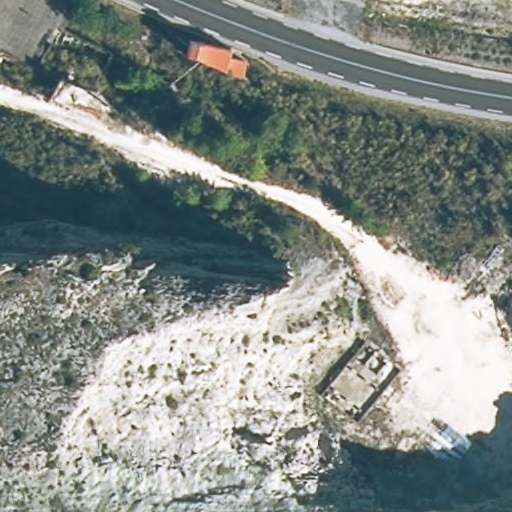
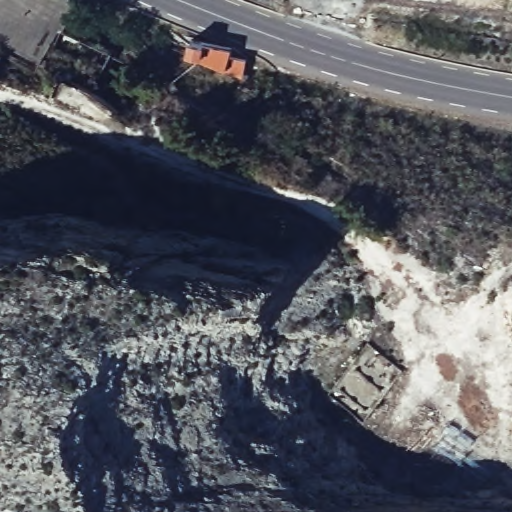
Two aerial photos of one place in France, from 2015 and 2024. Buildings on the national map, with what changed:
unchanged [(112,46),(95,80),(38,56),(33,67),(0,49),(0,0),(79,0),(62,26),(112,46)]
unchanged [(239,48),(235,66),(180,52),(184,34),(239,48)]

